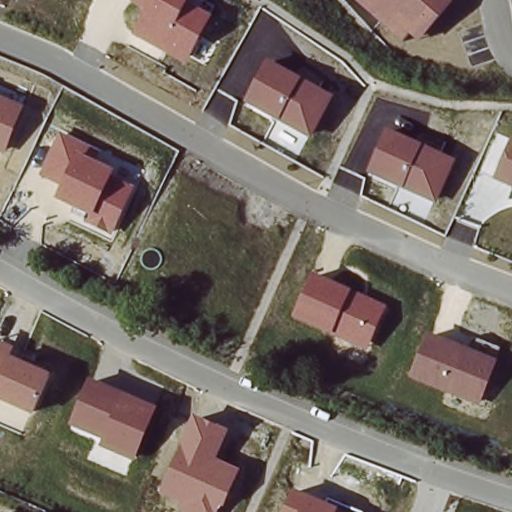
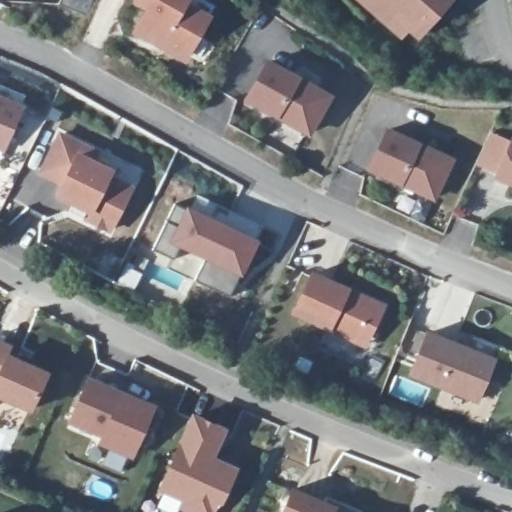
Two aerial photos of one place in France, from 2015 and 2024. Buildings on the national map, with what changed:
unchanged [(135,0),(189,0),(214,14),(188,62),(133,33),(146,10),(133,3),(135,0)]
unchanged [(420,38),(411,31),(403,40),(377,17),(356,0),(451,0),(420,38)]
unchanged [(267,60),(334,95),(313,136),(246,102),(267,60)]
unchanged [(24,106),(6,152),(0,150),(0,96),(24,106)]
unchanged [(386,128),(455,159),(436,202),(367,171),(386,128)]
unchanged [(60,129),(102,150),(97,160),(114,168),(112,174),(135,185),(112,234),(81,220),(68,213),(70,206),(53,198),(60,184),(38,172),(60,129)]
unchanged [(512,133),(512,187),(493,177),(512,133)]
new [(202,197),(263,225),(255,242),(195,213),(202,197)]
new [(174,203),(195,213),(255,242),(229,297),(195,280),(206,256),(181,245),(174,259),(153,249),(174,203)]
unchanged [(311,271),(386,304),(367,348),(292,315),(311,271)]
unchanged [(428,332),(497,358),(479,403),(409,375),(428,332)]
unchanged [(14,344),(10,355),(48,372),(31,413),(0,400),(0,338),(14,344)]
unchanged [(89,376),(156,406),(133,459),(97,443),(100,437),(68,423),(89,376)]
unchanged [(227,429),(216,458),(239,467),(222,508),(218,507),(216,512),(185,512),(177,508),(181,501),(159,492),(192,414),(227,429)]
unchanged [(337,507),(335,512),(282,512),(293,488),(337,507)]

